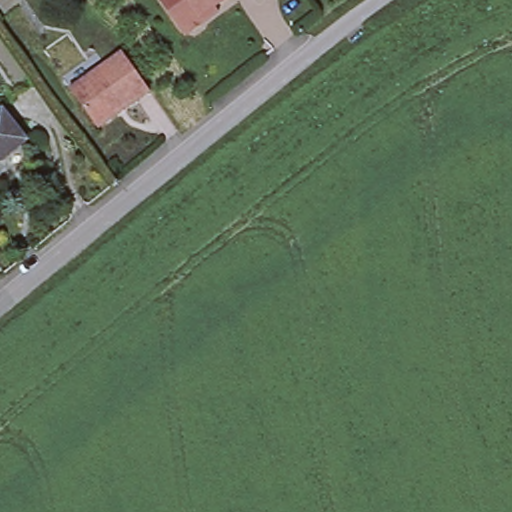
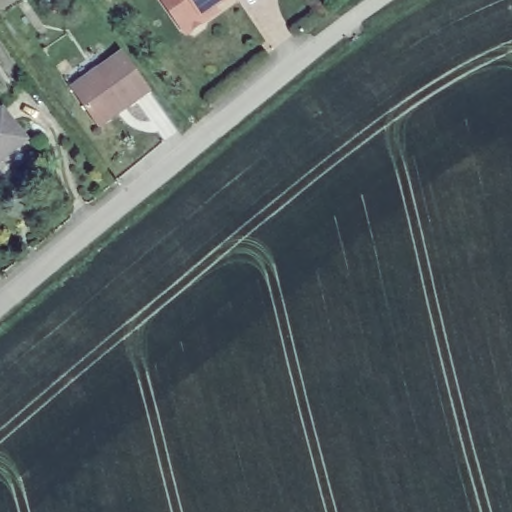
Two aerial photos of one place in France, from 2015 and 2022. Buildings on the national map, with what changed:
unchanged [(200,24),(188,32),(180,32),(157,0),(221,0),(216,4),(220,9),(200,24)]
unchanged [(121,47),(149,86),(125,102),(97,64),(121,47)]
unchanged [(97,122),(70,85),(97,64),(125,102),(97,122)]
unchanged [(22,135),(4,150),(0,153),(0,108),(22,135)]

